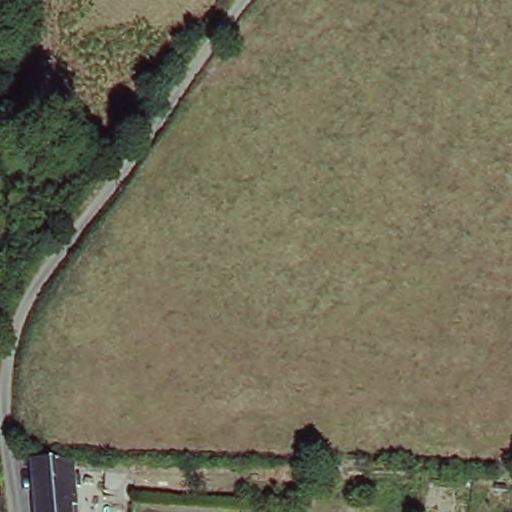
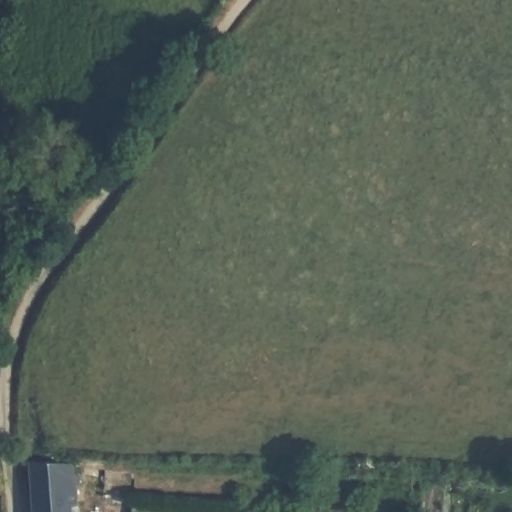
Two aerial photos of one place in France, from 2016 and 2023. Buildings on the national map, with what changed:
unchanged [(69,461),(74,505),(67,505),(68,512),(31,512),(26,460),(69,461)]

